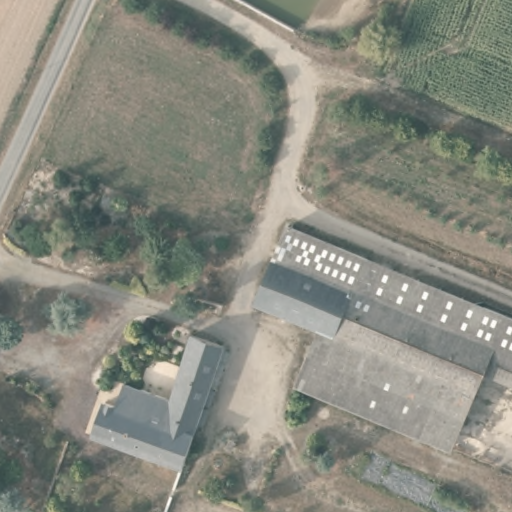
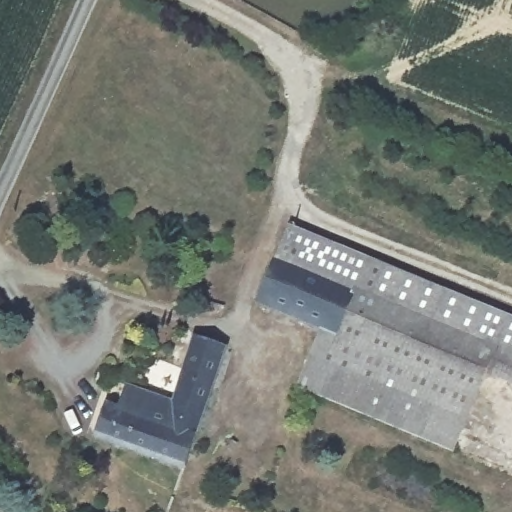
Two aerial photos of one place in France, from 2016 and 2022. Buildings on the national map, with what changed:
unchanged [(337,334),(319,326),(257,299),(290,221),(303,227),(371,255),(367,266),(337,334)]
unchanged [(453,442),(298,378),(319,326),(337,334),(367,266),(371,255),(512,313),(512,378),(486,368),(453,442)]
unchanged [(181,469),(72,430),(83,397),(118,410),(126,387),(170,401),(192,338),(225,349),(181,469)]

